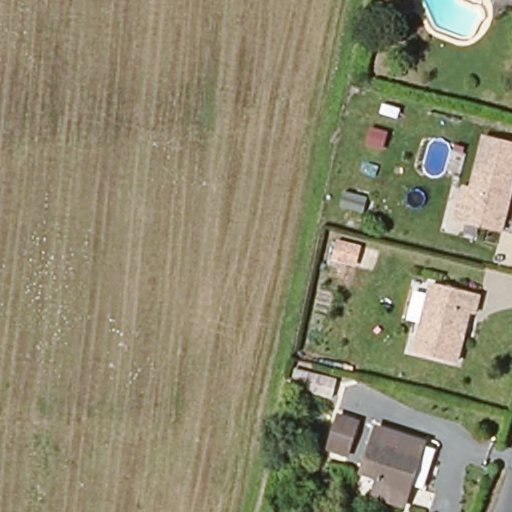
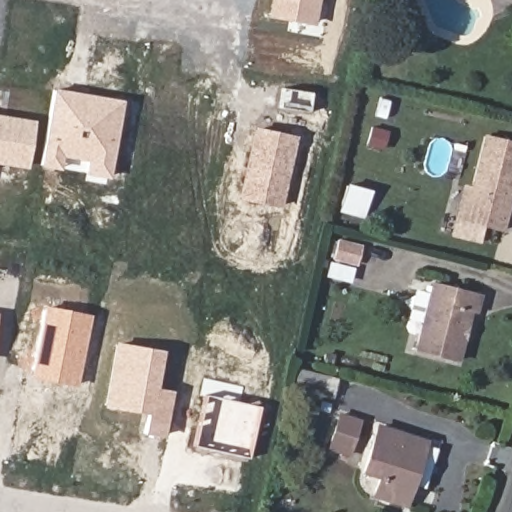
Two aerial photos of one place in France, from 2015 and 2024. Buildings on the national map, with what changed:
new [(315,26),(267,18),(270,0),(319,0),(315,26)]
unchanged [(395,23),(387,0),(412,0),(417,15),(395,23)]
new [(124,101),(110,180),(86,177),(87,162),(63,160),(57,171),(41,168),(54,89),(124,101)]
new [(27,170),(0,165),(0,115),(35,121),(27,170)]
new [(296,137),(280,208),(236,199),(252,127),(296,137)]
unchanged [(512,145),(512,187),(500,228),(463,219),(486,138),(512,145)]
new [(348,187),(372,195),(367,214),(342,208),(348,187)]
unchanged [(363,247),(358,266),(335,260),(339,241),(363,247)]
unchanged [(475,315),(467,315),(455,363),(415,353),(430,287),(478,299),(475,315)]
new [(76,385),(30,375),(44,307),(91,315),(76,385)]
new [(115,342),(164,351),(157,388),(174,390),(165,438),(143,434),(146,415),(104,407),(115,342)]
unchanged [(339,384),(335,401),(295,391),(299,374),(339,384)]
new [(247,459),(191,446),(202,396),(258,408),(247,459)]
unchanged [(356,422),(346,456),(327,451),(337,416),(356,422)]
unchanged [(423,488),(411,484),(405,504),(375,495),(379,478),(362,473),(376,428),(423,442),(422,445),(435,449),(423,488)]

